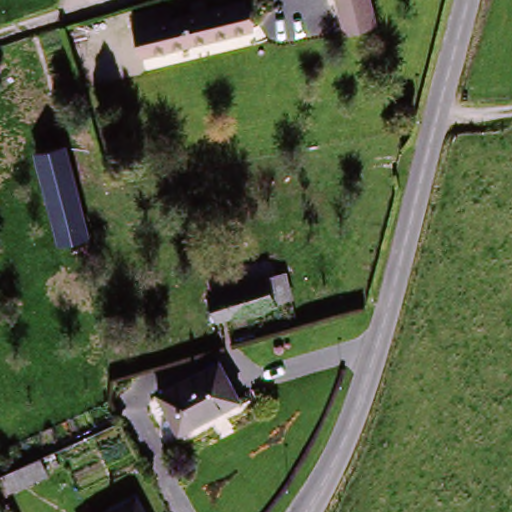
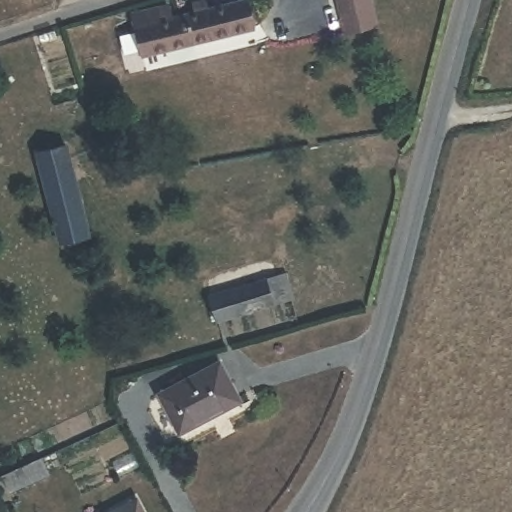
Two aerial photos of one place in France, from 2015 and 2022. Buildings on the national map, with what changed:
unchanged [(345,31),(335,0),(366,0),(374,24),(345,31)]
unchanged [(149,60),(137,16),(172,9),(176,23),(253,6),(261,36),(149,60)]
unchanged [(71,149),(90,244),(66,247),(47,151),(71,149)]
unchanged [(263,288),(283,280),(290,303),(271,310),(222,331),(213,308),(263,288)]
unchanged [(224,363),(241,396),(179,428),(161,395),(224,363)]
unchanged [(47,457),(54,472),(17,490),(10,474),(47,457)]
unchanged [(138,499),(145,512),(112,512),(138,499)]

